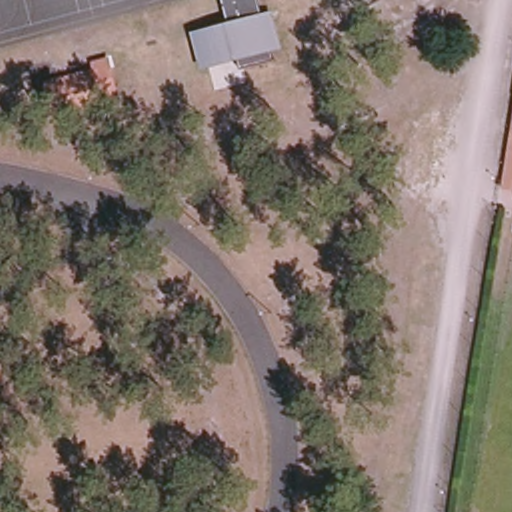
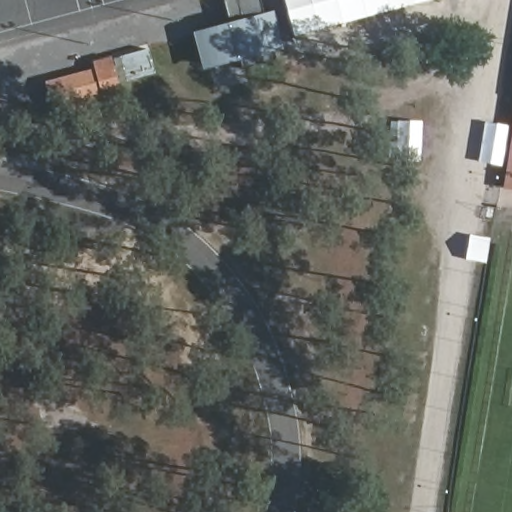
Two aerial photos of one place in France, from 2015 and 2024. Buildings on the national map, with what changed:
unchanged [(222,0),(258,0),(262,14),(274,11),(284,49),(271,53),(275,60),(241,70),(239,61),(202,71),(191,33),(227,24),(222,0)]
new [(285,0),(428,0),(294,35),(285,0)]
unchanged [(106,103),(102,93),(78,100),(81,109),(56,115),(47,85),(96,71),(95,64),(109,60),(111,66),(120,99),(106,103)]
unchanged [(500,186),(512,117),(512,188),(500,186)]

